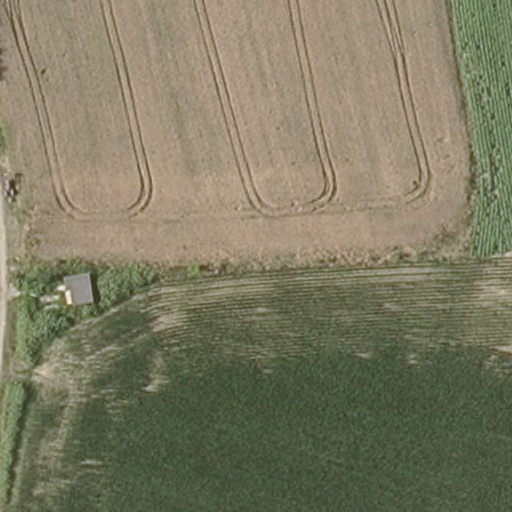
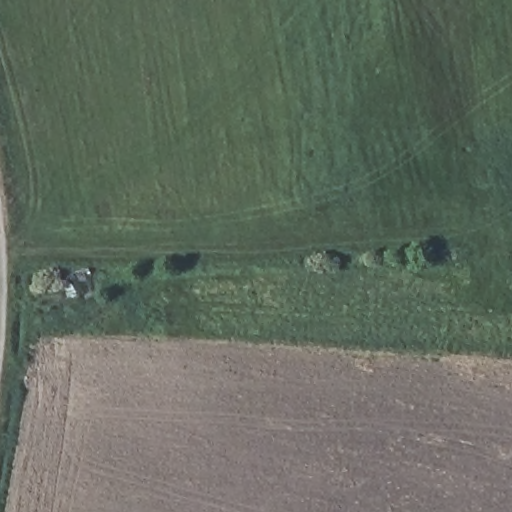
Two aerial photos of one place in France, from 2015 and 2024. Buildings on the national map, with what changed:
unchanged [(90,277),(92,308),(65,308),(64,278),(90,277)]

